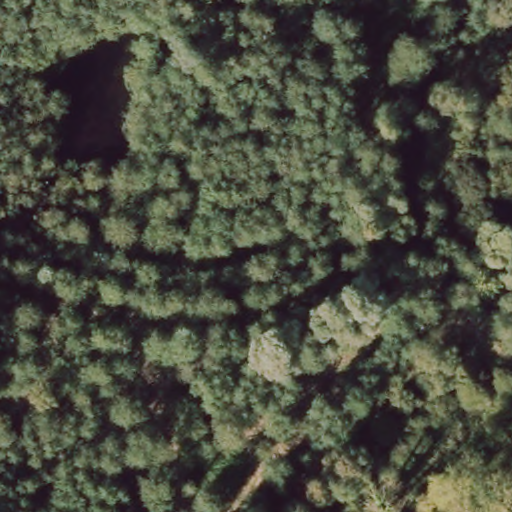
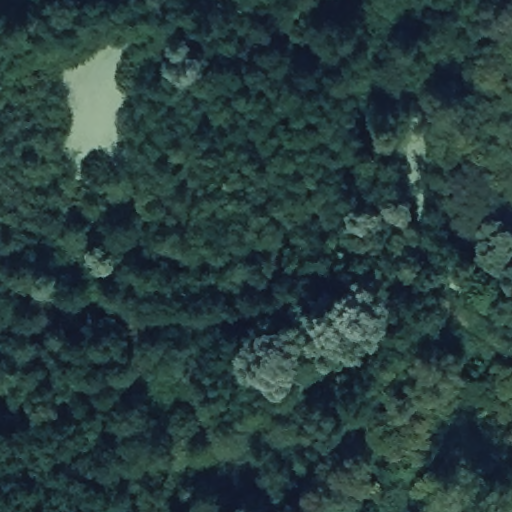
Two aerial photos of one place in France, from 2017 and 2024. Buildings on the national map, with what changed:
[]

